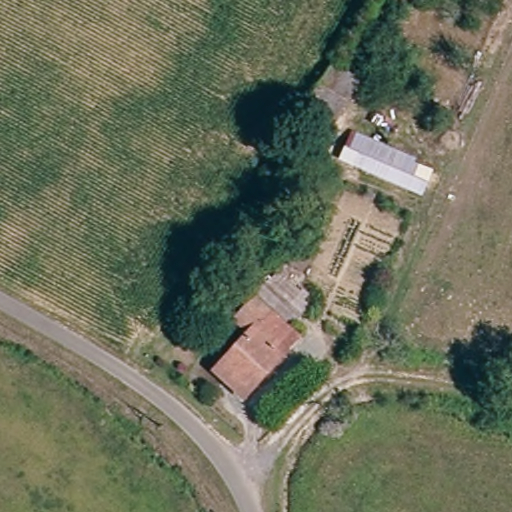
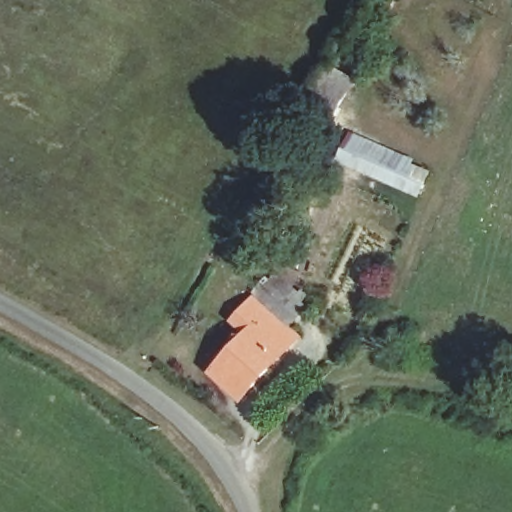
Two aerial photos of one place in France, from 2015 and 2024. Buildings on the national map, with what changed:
unchanged [(330,136),(303,122),(329,72),(353,86),(354,87),(355,87),(350,97),(330,136)]
unchanged [(427,169),(411,209),(334,171),(351,134),(427,169)]
unchanged [(313,306),(295,328),(306,339),(240,408),(208,379),(245,337),(228,325),(277,269),(313,306)]

